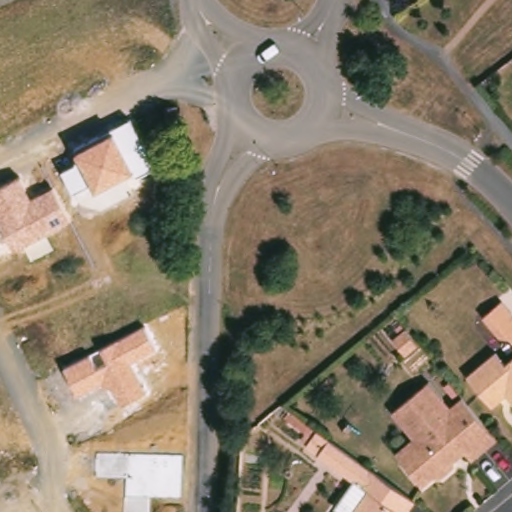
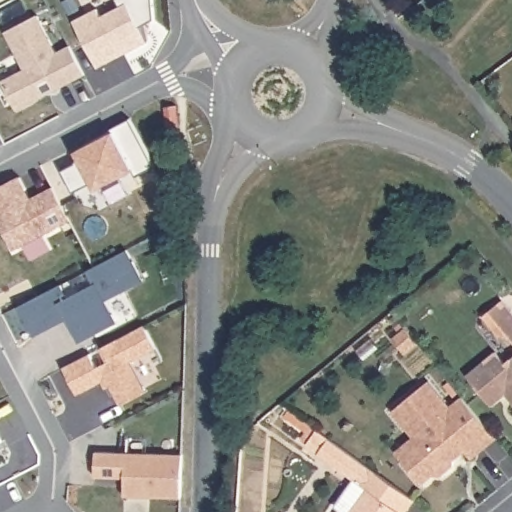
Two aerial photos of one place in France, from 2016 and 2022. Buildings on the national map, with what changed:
new [(104,14),(123,4),(121,0),(156,0),(158,16),(143,24),(151,39),(101,65),(77,19),(100,6),(104,14)]
new [(21,108),(5,79),(28,67),(8,30),(40,13),(60,50),(73,43),(88,72),(61,86),(54,90),(21,108)]
unchanged [(79,160),(75,154),(112,134),(109,130),(133,118),(158,165),(136,176),(134,173),(98,191),(92,182),(72,193),(60,170),(79,160)]
unchanged [(0,224),(0,187),(18,176),(29,198),(51,186),(70,222),(15,251),(0,224)]
new [(144,282),(106,301),(117,322),(80,341),(68,319),(35,336),(19,307),(127,249),(144,282)]
unchanged [(500,334),(483,314),(502,299),(512,310),(512,338),(509,335),(500,334)]
unchanged [(107,379),(77,394),(64,368),(90,355),(96,367),(106,362),(99,350),(142,328),(156,351),(131,366),(146,392),(122,406),(107,379)]
unchanged [(413,354),(401,339),(413,329),(426,344),(413,354)]
unchanged [(505,362),(512,356),(512,396),(509,393),(494,406),(470,376),(498,353),(505,362)]
unchanged [(430,381),(452,407),(456,412),(468,402),(489,428),(496,437),(473,456),(465,446),(455,455),(457,468),(443,479),(436,476),(424,485),(407,464),(420,453),(407,436),(413,431),(395,409),(430,381)]
new [(3,425),(11,441),(0,446),(0,419),(3,425)]
unchanged [(297,446),(308,431),(406,500),(397,512),(344,512),(359,490),(297,446)]
new [(105,452),(191,454),(190,498),(133,496),(134,478),(104,477),(105,452)]

